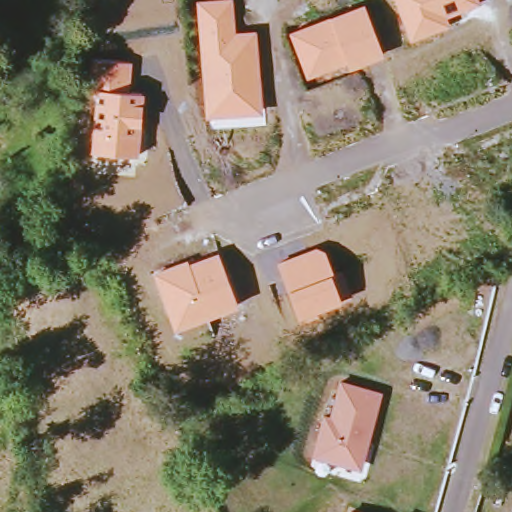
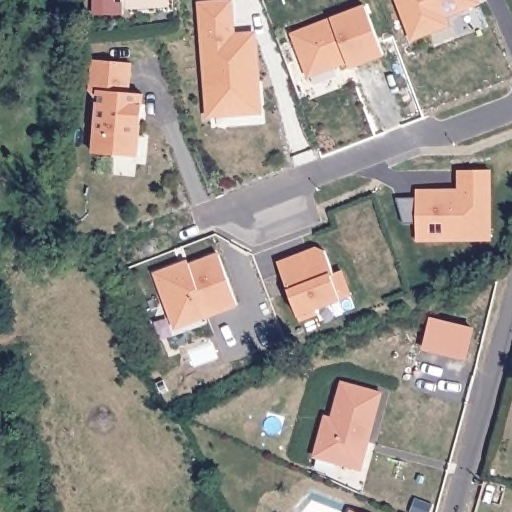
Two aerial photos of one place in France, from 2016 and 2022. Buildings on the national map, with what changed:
unchanged [(221,0),(233,0),(235,32),(256,32),(263,114),(206,119),(197,1),(221,0)]
unchanged [(478,0),(480,5),(446,17),(450,26),(410,43),(393,0),(478,0)]
unchanged [(290,35),(330,18),(363,5),(383,56),(349,70),(345,64),(307,78),(290,35)]
unchanged [(130,92),(145,95),(139,159),(91,152),(97,90),(99,62),(132,64),(130,92)]
new [(416,242),(415,224),(404,224),(397,200),(415,199),(416,190),(457,190),(456,172),(490,171),(492,242),(416,242)]
unchanged [(289,290),(278,262),(316,247),(325,250),(334,271),(328,272),(341,302),(298,317),(289,290)]
unchanged [(175,330),(155,272),(186,260),(188,265),(218,252),(239,306),(175,330)]
new [(430,317),(474,328),(466,363),(421,351),(430,317)]
unchanged [(360,467),(310,455),(323,412),(330,415),(338,380),(382,392),(360,467)]
unchanged [(348,508),(357,512),(347,512),(348,508)]

